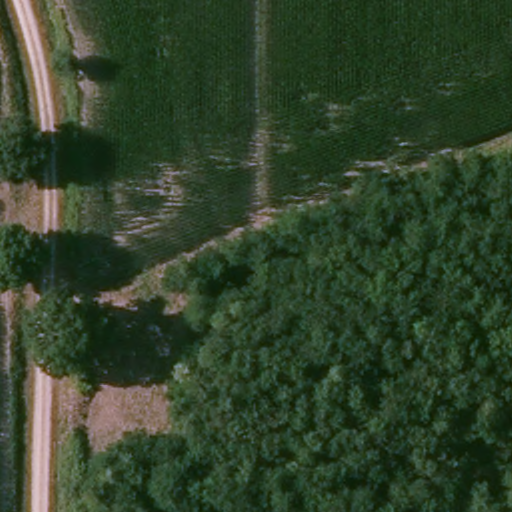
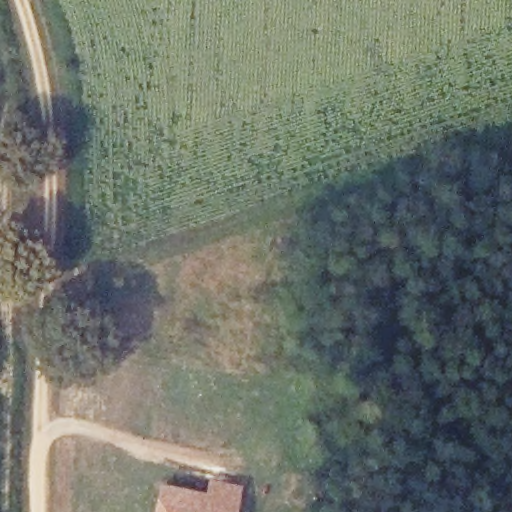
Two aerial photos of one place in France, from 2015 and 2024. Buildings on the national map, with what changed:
new [(240,485),(235,512),(154,512),(160,483),(206,493),(210,479),(240,485)]

